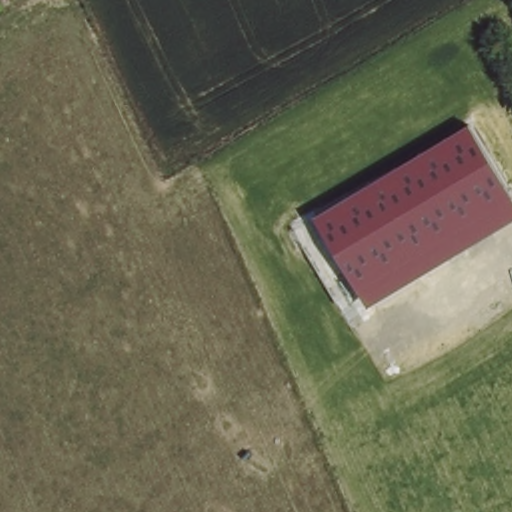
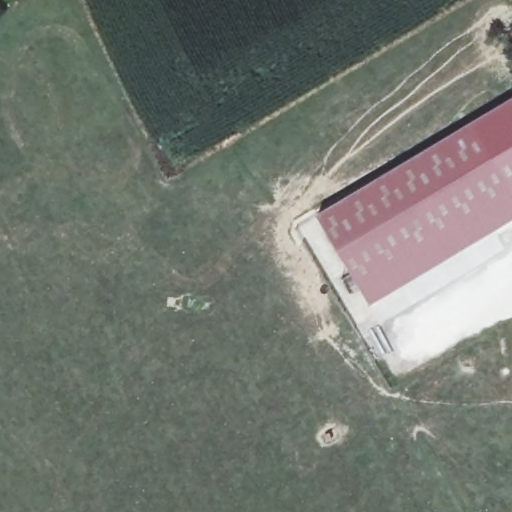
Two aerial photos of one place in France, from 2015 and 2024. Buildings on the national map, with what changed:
new [(512,99),(512,191),(472,125),(512,99)]
unchanged [(317,218),(472,125),(512,191),(512,222),(370,307),(317,218)]

